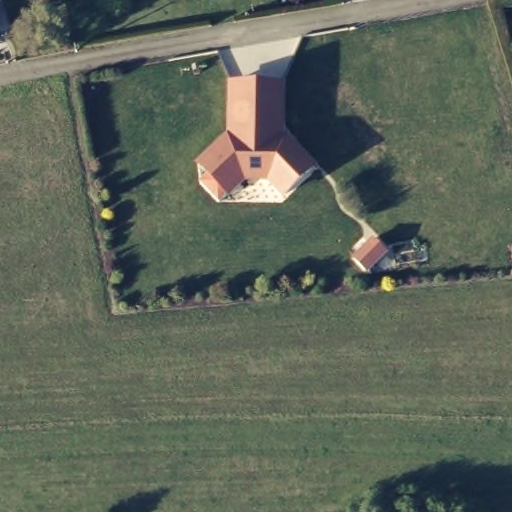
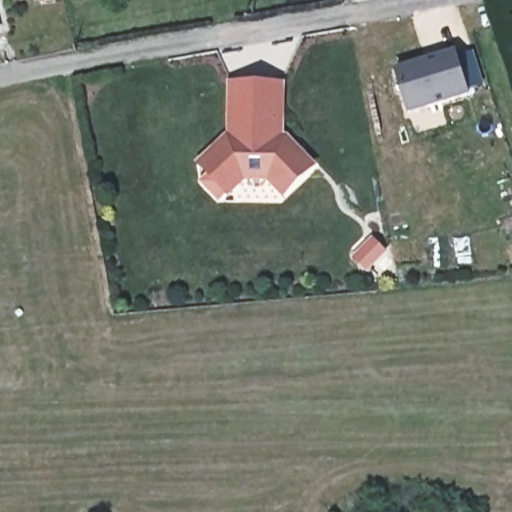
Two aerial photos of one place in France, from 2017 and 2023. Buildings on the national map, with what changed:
new [(426,62),(457,52),(458,57),(474,53),(484,85),(468,90),(470,95),(410,114),(398,73),(427,64),(426,62)]
unchanged [(283,196),(268,180),(245,180),(221,204),(196,181),(205,171),(196,162),(226,132),(227,80),(283,81),(285,132),(316,163),(283,196)]

